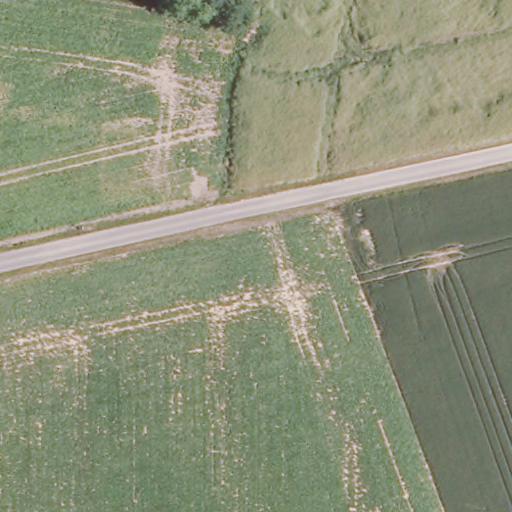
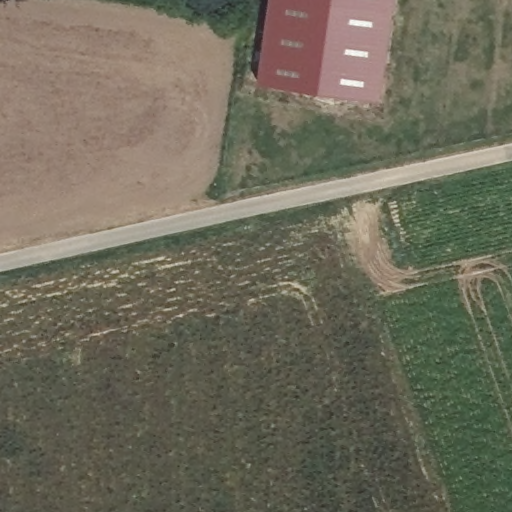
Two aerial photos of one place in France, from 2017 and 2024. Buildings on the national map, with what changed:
new [(383,94),(363,91),(364,81),(341,78),(338,96),(301,91),(303,76),(260,70),(270,0),(397,0),(383,94)]

